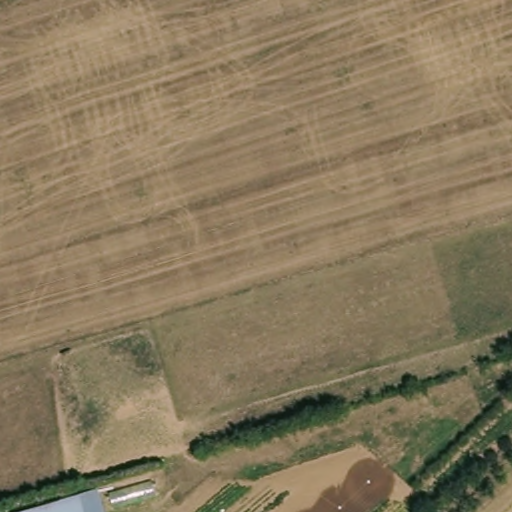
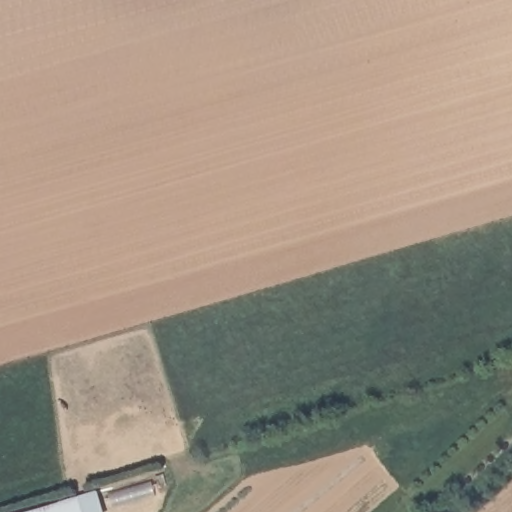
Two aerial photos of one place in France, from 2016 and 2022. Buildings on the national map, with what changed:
unchanged [(77,498),(81,512),(32,512),(77,498)]

